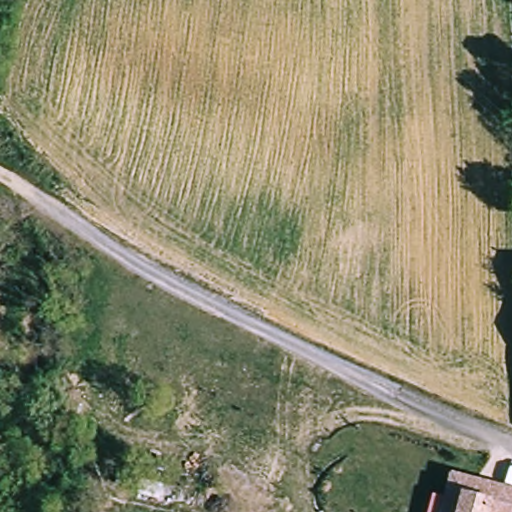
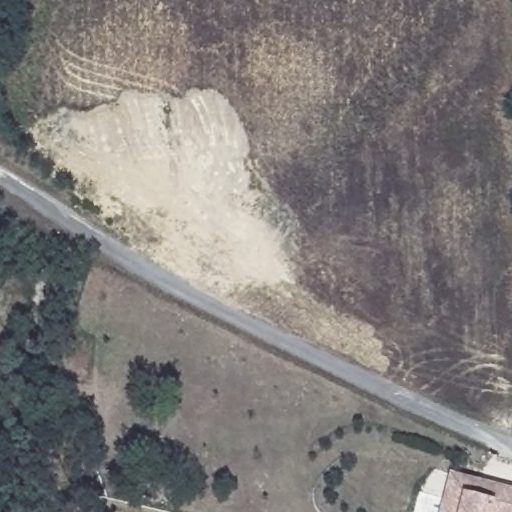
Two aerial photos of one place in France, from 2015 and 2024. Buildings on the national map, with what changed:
unchanged [(512,479),(512,512),(434,512),(436,500),(439,471),(512,479)]

